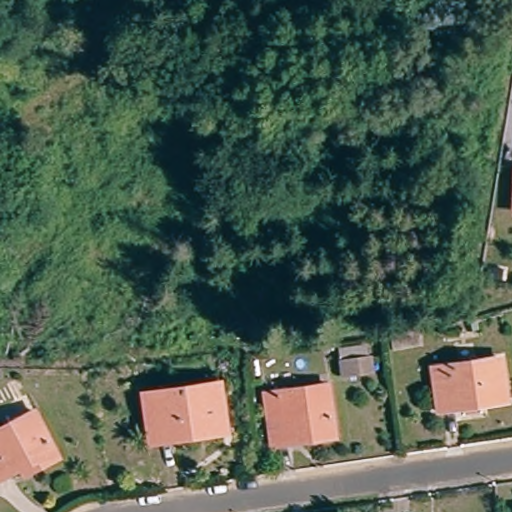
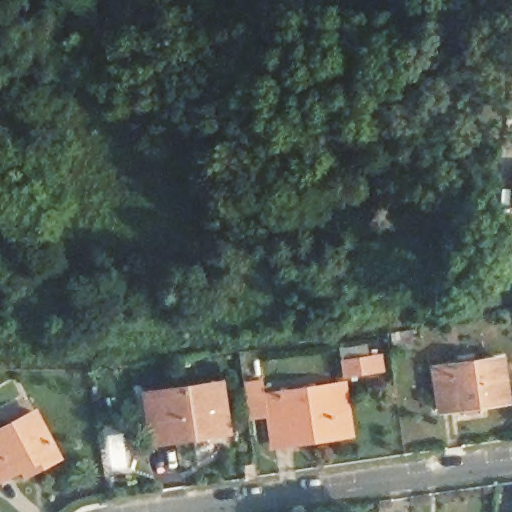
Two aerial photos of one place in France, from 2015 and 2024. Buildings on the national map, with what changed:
unchanged [(422,352),(394,357),(391,340),(420,334),(422,352)]
unchanged [(376,358),(378,375),(343,380),(341,363),(376,358)]
unchanged [(507,407),(441,417),(435,377),(501,367),(507,407)]
unchanged [(192,433),(150,439),(142,392),(215,381),(220,420),(221,428),(192,433)]
unchanged [(297,443),(275,446),(269,397),(330,389),(336,429),(337,438),(297,443)]
unchanged [(25,466),(21,459),(0,470),(0,424),(35,406),(54,443),(57,449),(25,466)]

